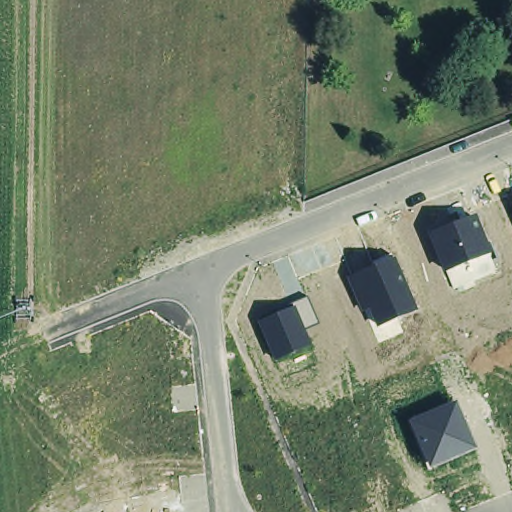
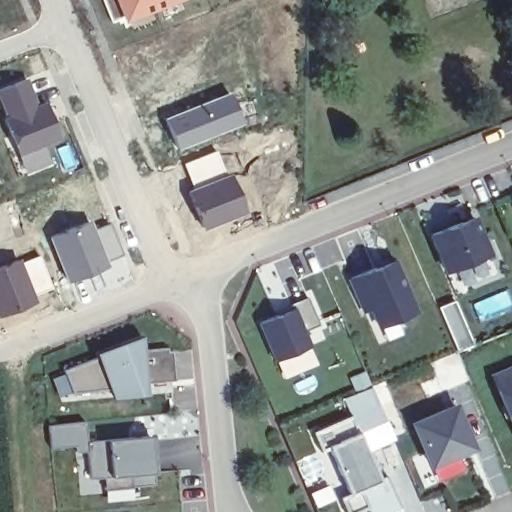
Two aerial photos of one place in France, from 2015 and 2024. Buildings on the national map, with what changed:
new [(120,0),(175,0),(126,18),(120,0)]
new [(28,74),(40,104),(49,101),(66,141),(18,160),(0,107),(0,85),(28,74)]
new [(227,90),(241,123),(177,148),(162,116),(227,90)]
new [(181,162),(214,148),(225,171),(243,212),(203,228),(186,189),(191,186),(181,162)]
unchanged [(492,255),(444,274),(428,234),(477,215),(492,255)]
new [(91,218),(94,227),(108,222),(121,254),(106,260),(108,264),(66,281),(48,236),(91,218)]
new [(20,259),(38,253),(53,286),(34,294),(36,299),(0,315),(0,264),(19,257),(20,259)]
unchanged [(376,328),(369,311),(364,312),(350,278),(394,256),(419,310),(376,328)]
unchanged [(319,324),(306,330),(310,345),(274,361),(256,322),(293,308),(291,304),(308,297),(319,324)]
new [(142,330),(144,349),(168,347),(167,351),(173,351),(176,381),(169,381),(170,390),(150,392),(151,396),(110,401),(104,389),(73,392),(65,370),(93,359),(89,349),(142,330)]
new [(512,363),(512,431),(487,374),(512,363)]
unchanged [(429,469),(408,421),(455,400),(477,448),(429,469)]
new [(399,512),(369,512),(366,506),(353,512),(345,512),(339,497),(349,492),(328,447),(319,450),(311,431),(377,402),(393,437),(366,450),(379,480),(388,477),(402,510),(399,512)]
new [(105,476),(92,477),(89,449),(78,450),(78,444),(53,446),(50,424),(87,420),(89,440),(151,434),(156,482),(133,484),(106,487),(105,476)]

